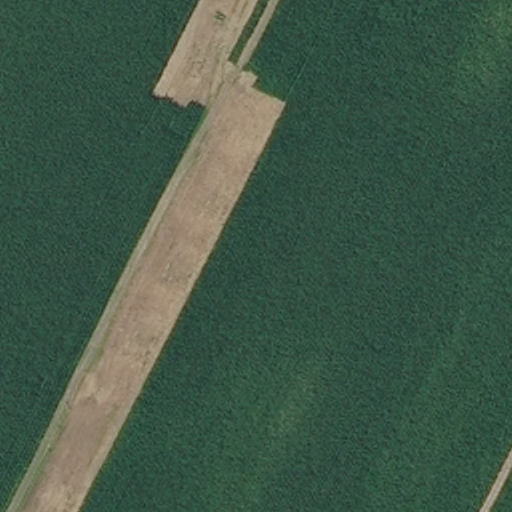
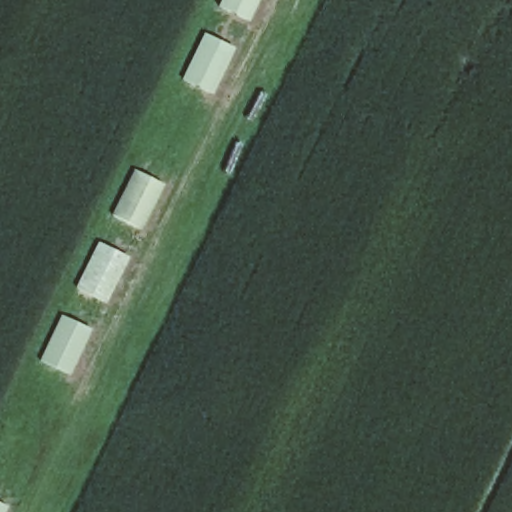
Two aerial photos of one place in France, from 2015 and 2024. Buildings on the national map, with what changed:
new [(245,20),(215,6),(218,0),(255,0),(245,20)]
new [(210,94),(180,80),(202,32),(232,47),(210,94)]
new [(140,229),(110,215),(132,169),(162,183),(140,229)]
new [(105,302),(74,287),(97,241),(127,257),(105,302)]
new [(69,375),(39,360),(59,315),(89,328),(69,375)]
new [(0,512),(0,503),(5,505),(2,512),(0,512)]

